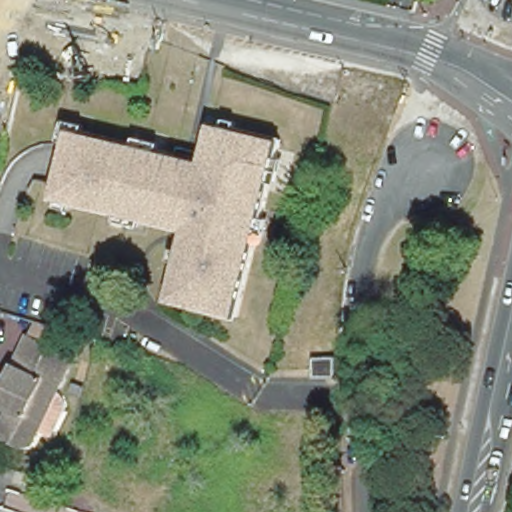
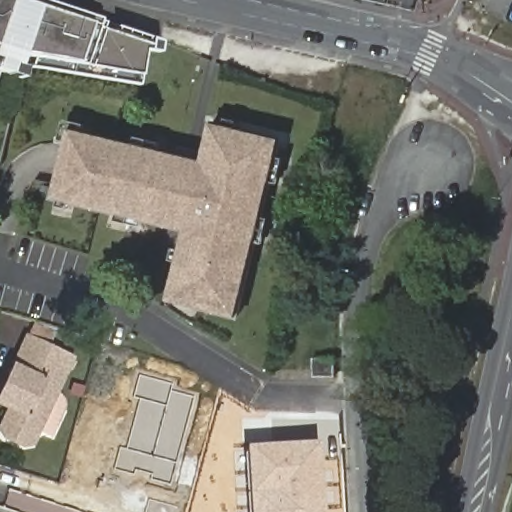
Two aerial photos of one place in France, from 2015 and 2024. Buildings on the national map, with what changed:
new [(44,0),(99,18),(96,24),(151,43),(151,37),(162,39),(161,52),(146,51),(141,75),(140,84),(0,61),(0,0),(44,0)]
demolished [(148,47),(140,81),(81,62),(90,35),(45,22),(50,0),(109,0),(170,14),(161,52),(148,47)]
demolished [(19,9),(9,49),(0,47),(0,4),(19,9)]
unchanged [(172,277),(185,223),(53,189),(70,120),(177,148),(202,154),(211,117),(259,130),(284,137),(243,305),(205,295),(194,292),(170,285),(172,277)]
unchanged [(55,338),(76,347),(53,394),(47,391),(37,411),(42,420),(36,432),(29,435),(9,426),(5,419),(15,398),(1,392),(31,327),(55,338)]
new [(119,447),(125,448),(138,398),(134,397),(140,374),(173,383),(171,389),(194,395),(169,485),(150,479),(152,473),(134,468),(134,473),(114,468),(119,447)]
new [(324,512),(249,512),(246,444),(320,439),(324,512)]

